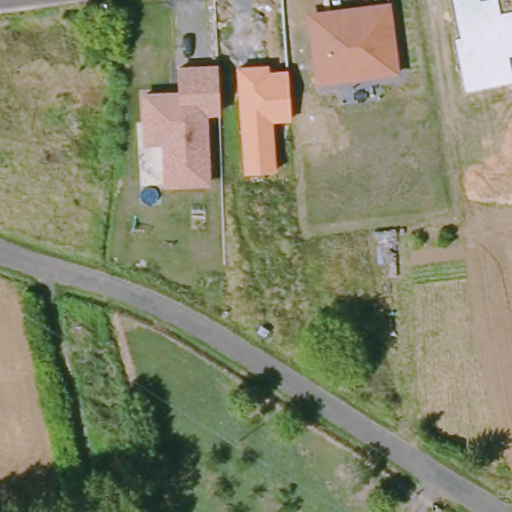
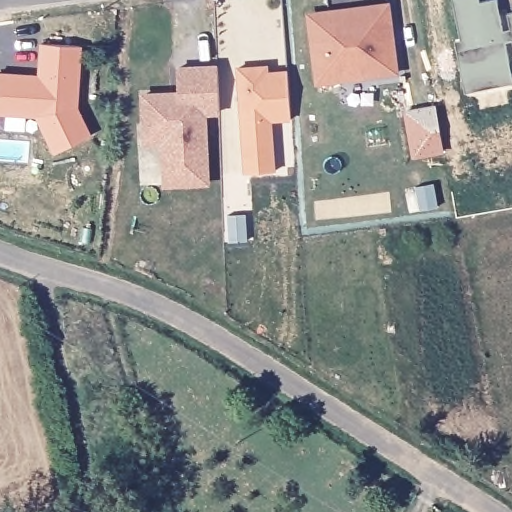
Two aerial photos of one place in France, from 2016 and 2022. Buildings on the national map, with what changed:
unchanged [(501,12),(512,9),(512,54),(508,55),(512,71),(512,80),(465,91),(456,37),(462,36),(455,0),(498,0),(501,12)]
unchanged [(305,12),(390,2),(400,72),(315,85),(305,12)]
new [(92,135),(54,152),(37,117),(0,113),(0,71),(39,75),(41,42),(83,46),(78,107),(92,135)]
unchanged [(173,82),(172,58),(212,57),(213,102),(198,102),(200,172),(158,173),(157,131),(140,131),(138,84),(173,82)]
unchanged [(269,71),(287,71),(291,122),(273,122),(276,171),(243,174),(237,67),(269,65),(269,71)]
new [(434,184),(438,207),(419,210),(415,187),(434,184)]

